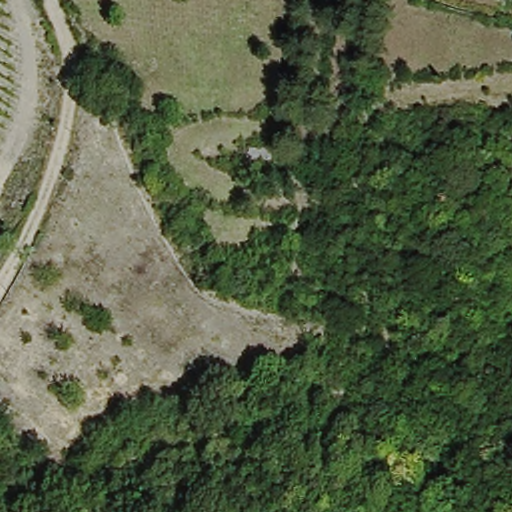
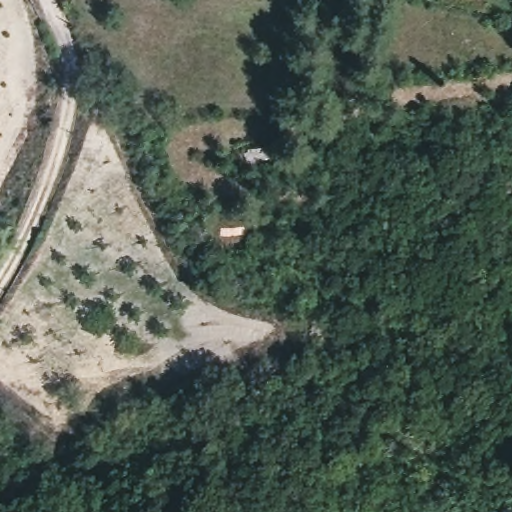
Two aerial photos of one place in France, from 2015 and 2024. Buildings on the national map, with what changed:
[]

